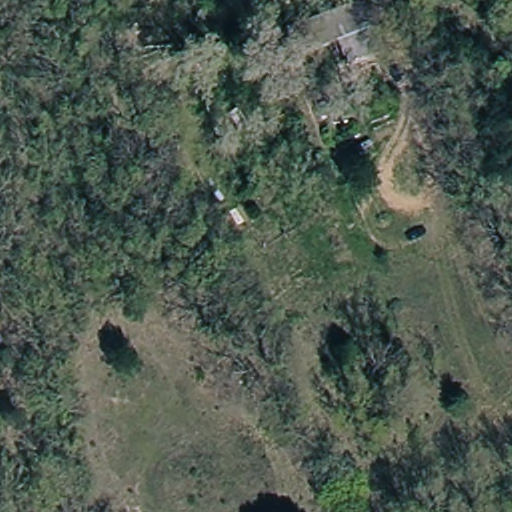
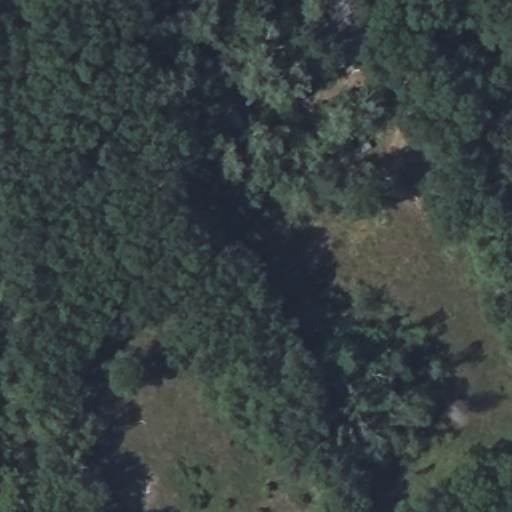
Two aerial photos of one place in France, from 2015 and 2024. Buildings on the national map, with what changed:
unchanged [(382,42),(329,63),(316,32),(370,10),(382,42)]

